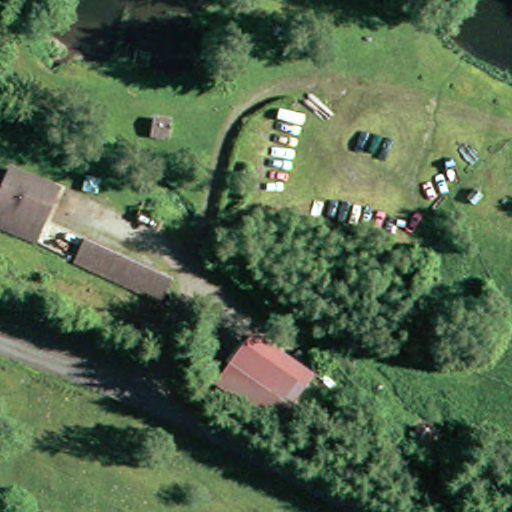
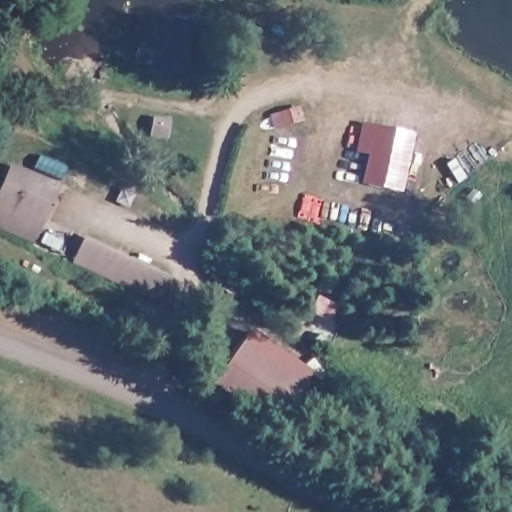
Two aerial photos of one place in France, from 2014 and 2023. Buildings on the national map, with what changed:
new [(305,119),(273,129),(270,114),(300,104),(305,119)]
unchanged [(172,134),(155,132),(157,116),(174,118),(172,134)]
new [(374,124),(414,131),(403,190),(363,182),(374,124)]
unchanged [(0,220),(0,199),(15,164),(60,182),(37,235),(0,220)]
unchanged [(170,269),(160,293),(72,251),(82,229),(170,269)]
unchanged [(279,421),(214,384),(239,340),(304,378),(279,421)]
unchanged [(442,433),(435,446),(417,437),(422,424),(442,433)]

